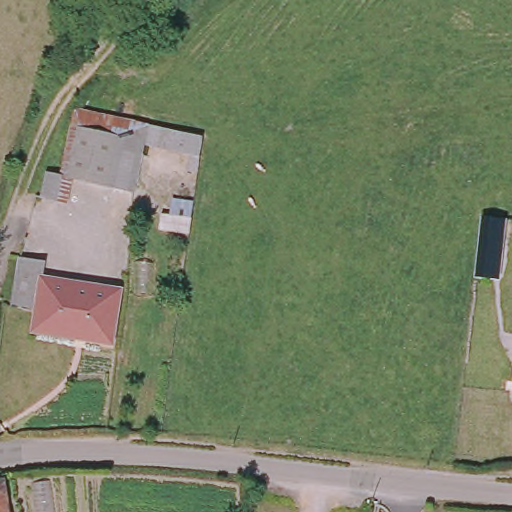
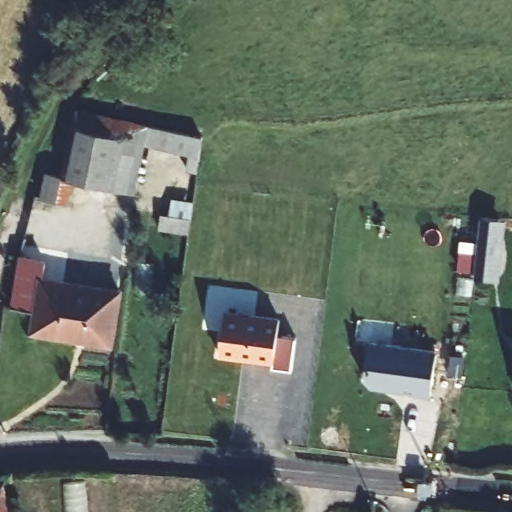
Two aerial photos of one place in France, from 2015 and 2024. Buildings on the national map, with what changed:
unchanged [(178,177),(181,157),(136,147),(127,190),(69,178),(64,205),(43,201),(48,173),(65,177),(78,109),(196,138),(191,179),(178,177)]
unchanged [(481,217),(506,219),(499,282),(474,279),(481,217)]
unchanged [(189,242),(157,239),(158,224),(191,227),(189,242)]
unchanged [(46,265),(44,280),(121,290),(113,342),(36,332),(38,316),(11,312),(21,262),(46,265)]
new [(279,332),(299,334),(294,368),(274,366),(274,362),(219,354),(226,307),(281,316),(279,332)]
new [(431,394),(372,386),(364,374),(371,338),(439,346),(431,394)]
unchanged [(2,487),(3,490),(8,490),(10,506),(1,507),(2,512),(0,512),(0,487),(2,487)]

